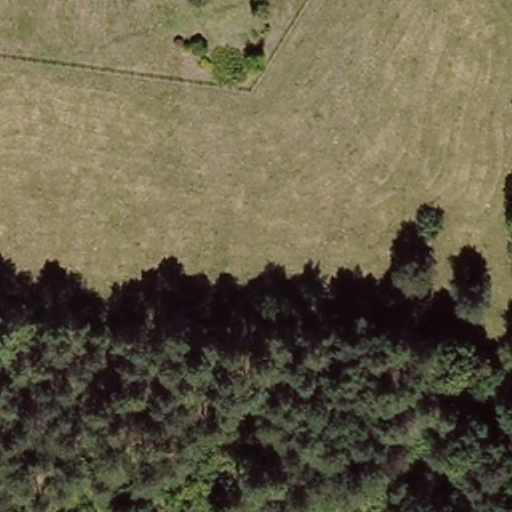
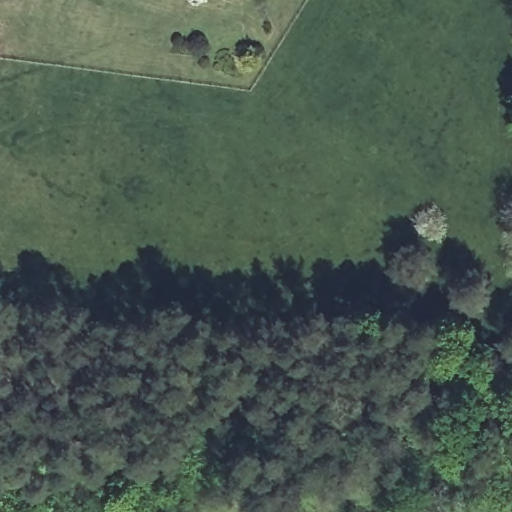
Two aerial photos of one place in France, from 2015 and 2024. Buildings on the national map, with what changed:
[]

